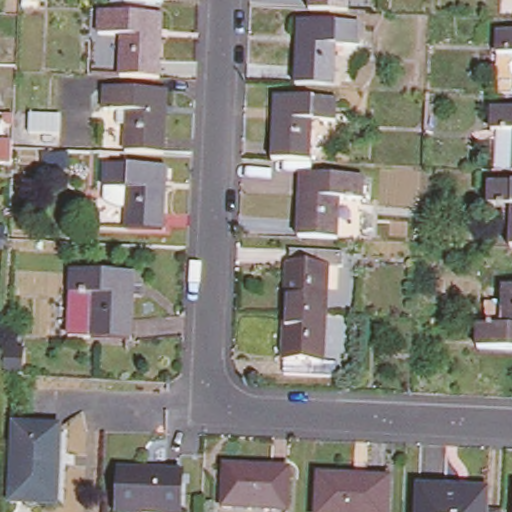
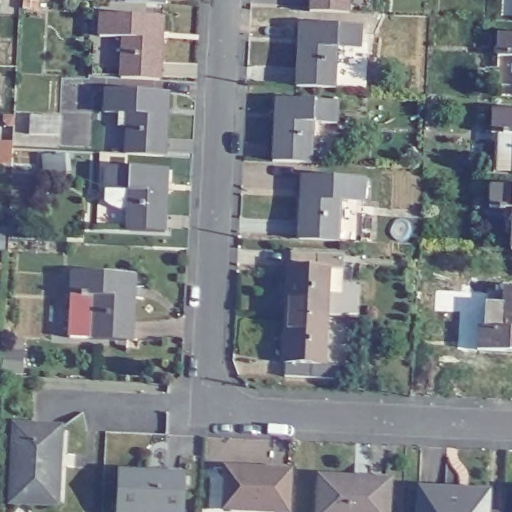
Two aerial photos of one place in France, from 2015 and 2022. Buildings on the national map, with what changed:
unchanged [(311,0),(349,0),(349,10),(311,8),(311,0)]
unchanged [(124,34),(100,33),(101,11),(158,14),(157,33),(162,34),(159,76),(122,74),(124,34)]
unchanged [(299,40),(304,40),(305,20),(361,23),(360,46),(337,45),(334,85),(297,83),(299,40)]
unchanged [(492,53),(494,30),(512,31),(512,54),(492,53)]
unchanged [(124,111),(100,111),(102,87),(158,89),(156,112),(162,112),(159,152),(122,151),(124,111)]
unchanged [(274,116),(279,117),(281,96),(337,99),(336,121),(312,120),(311,160),(273,159),(274,116)]
unchanged [(505,170),(506,130),(482,129),(484,108),(512,109),(512,170),(505,170)]
unchanged [(129,186),(105,185),(107,164),(164,166),(162,185),(167,186),(165,229),(127,227),(129,186)]
unchanged [(338,197),(336,237),(299,235),(300,194),(305,194),(307,174),(363,176),(362,198),(338,197)]
unchanged [(490,205),(490,182),(512,182),(512,205),(490,205)]
unchanged [(362,238),(336,237),(338,197),(362,198),(362,238)]
unchanged [(287,269),(289,259),(290,245),(342,247),(342,261),(327,261),(325,308),(283,306),(285,270),(287,269)]
unchanged [(72,269),(130,272),(129,291),(135,293),(132,338),(92,337),(69,336),(72,292),(72,269)]
unchanged [(512,285),(512,348),(477,346),(479,324),(502,326),(505,285),(512,285)]
unchanged [(337,371),(283,368),(285,354),(285,347),(281,346),(283,306),(325,308),(322,356),(337,358),(337,371)]
unchanged [(60,431),(55,507),(10,506),(14,428),(60,431)]
unchanged [(285,468),(284,509),(220,504),(220,464),(285,468)]
unchanged [(184,476),(182,512),(118,512),(120,473),(184,476)]
unchanged [(389,478),(386,512),(317,512),(320,475),(389,478)]
unchanged [(419,485),(490,490),(490,510),(502,509),(502,512),(418,512),(419,485)]

